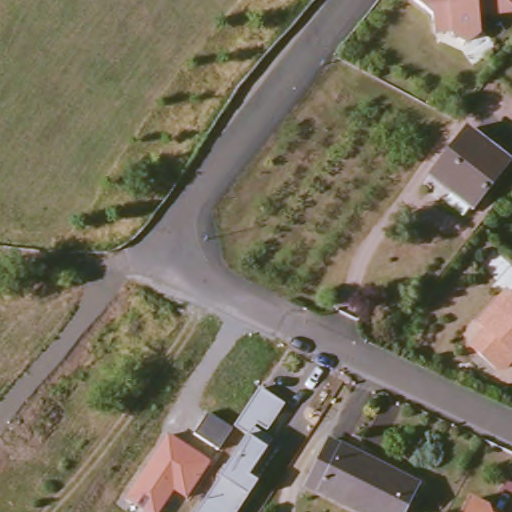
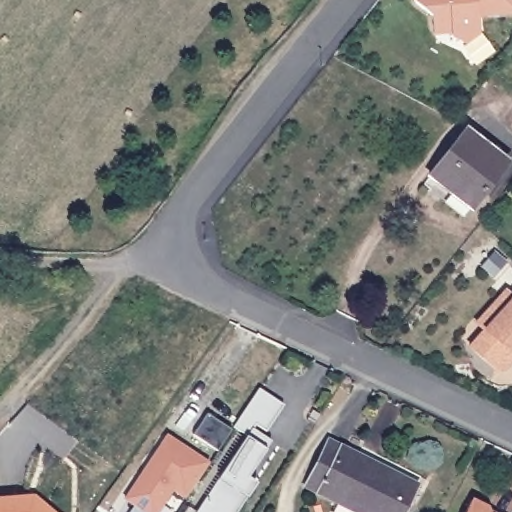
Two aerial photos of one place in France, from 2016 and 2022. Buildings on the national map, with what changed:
unchanged [(480,18),(482,34),(469,44),(455,38),(454,34),(437,36),(435,19),(416,4),(419,0),(512,0),(512,13),(480,18)]
unchanged [(434,173),(467,131),(507,162),(472,208),(448,190),(430,177),(434,173)]
unchanged [(508,366),(500,366),(475,344),(488,327),(481,321),(510,288),(512,290),(512,361),(508,366)]
unchanged [(258,387),(283,403),(262,434),(270,439),(265,447),(247,476),(255,481),(246,496),(235,512),(194,512),(218,477),(246,435),(233,425),(258,387)]
unchanged [(185,499),(173,491),(159,512),(146,512),(125,499),(168,435),(210,463),(185,499)]
unchanged [(404,512),(356,512),(306,488),(328,443),(408,483),(402,497),(410,501),(404,512)]
new [(34,495),(54,512),(0,512),(0,497),(34,495)]
unchanged [(495,509),(501,512),(472,512),(478,501),(495,509)]

